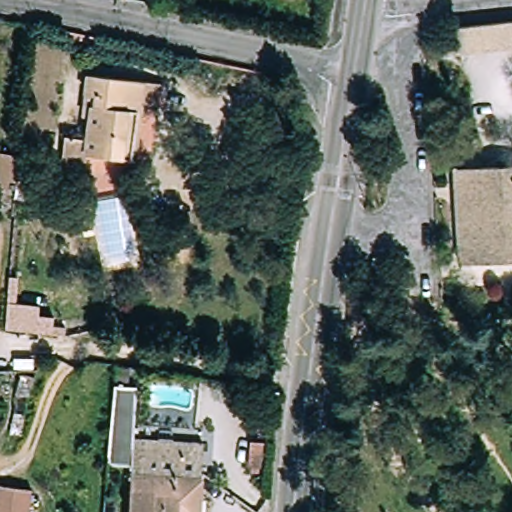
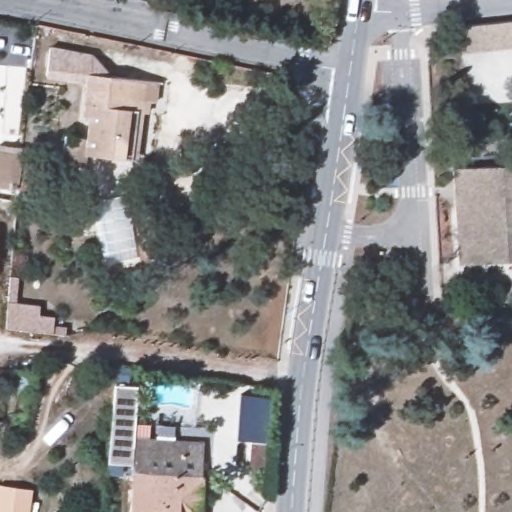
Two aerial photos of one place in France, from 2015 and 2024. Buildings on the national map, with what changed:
unchanged [(457,51),(455,27),(512,20),(512,46),(457,51)]
new [(92,55),(106,72),(105,77),(87,75),(86,83),(46,79),(50,48),(92,55)]
unchanged [(60,165),(64,137),(87,139),(89,118),(82,118),(87,75),(158,84),(155,103),(147,102),(145,115),(140,115),(135,160),(85,154),(84,168),(60,165)]
unchanged [(34,193),(33,202),(16,200),(17,184),(0,182),(0,153),(20,155),(20,165),(34,166),(31,192),(34,193)]
unchanged [(458,241),(454,170),(512,166),(512,237),(458,241)]
unchanged [(75,231),(72,219),(80,217),(83,229),(75,231)]
unchanged [(512,237),(512,261),(459,264),(458,241),(512,237)]
unchanged [(368,256),(384,259),(380,279),(376,278),(373,294),(362,292),(368,256)]
unchanged [(18,323),(36,324),(35,334),(17,332),(18,323)]
unchanged [(33,378),(27,398),(17,395),(23,375),(33,378)]
unchanged [(243,427),(245,402),(267,404),(265,429),(243,427)]
unchanged [(10,433),(12,415),(25,417),(22,435),(10,433)]
unchanged [(124,423),(122,462),(107,461),(110,422),(124,423)]
unchanged [(203,441),(199,512),(131,512),(136,437),(203,441)]
unchanged [(265,443),(263,463),(248,462),(249,442),(265,443)]
unchanged [(29,512),(0,512),(0,491),(31,495),(29,512)]

